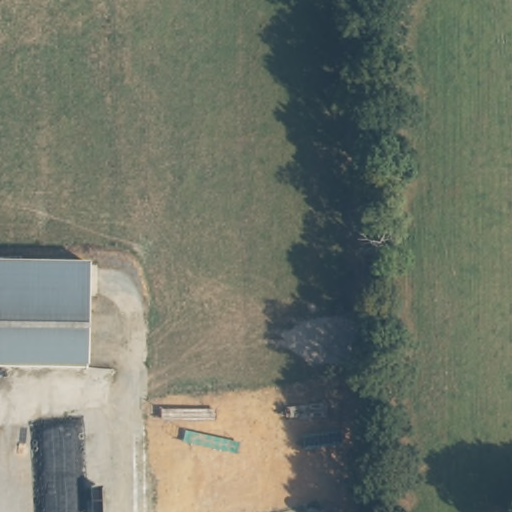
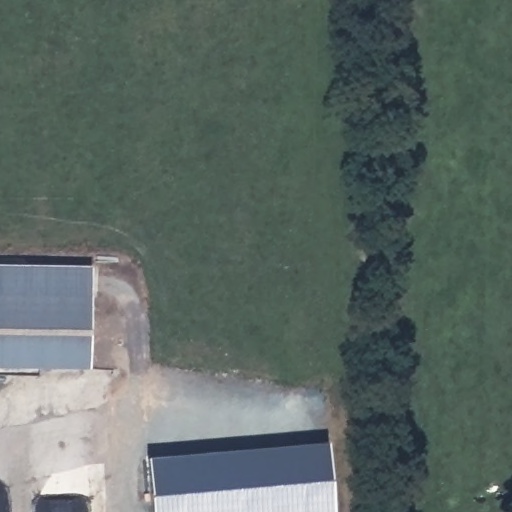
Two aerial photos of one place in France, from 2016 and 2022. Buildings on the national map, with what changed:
unchanged [(89,266),(87,366),(0,365),(0,265),(89,266)]
new [(329,442),(334,512),(151,512),(147,458),(329,442)]

